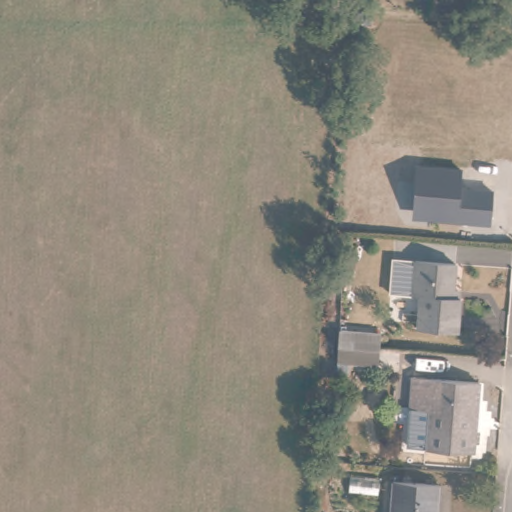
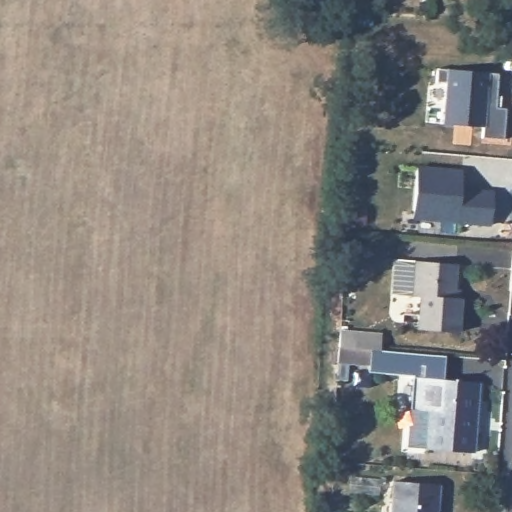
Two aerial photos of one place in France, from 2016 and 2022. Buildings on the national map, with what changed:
new [(479,126),(439,122),(443,83),(434,81),(436,68),(446,68),(488,72),(498,73),(494,106),(506,108),(504,139),(480,137),(479,126)]
unchanged [(489,224),(412,219),(415,167),(462,170),(460,189),(492,192),(489,224)]
unchanged [(457,265),(454,300),(462,301),(459,333),(419,330),(422,298),(413,297),(416,262),(457,265)]
unchanged [(328,384),(329,367),(330,351),(369,353),(368,370),(367,387),(328,384)]
unchanged [(478,380),(472,453),(429,449),(431,412),(409,410),(412,375),(478,380)]
unchanged [(434,512),(389,512),(392,481),(436,484),(434,512)]

